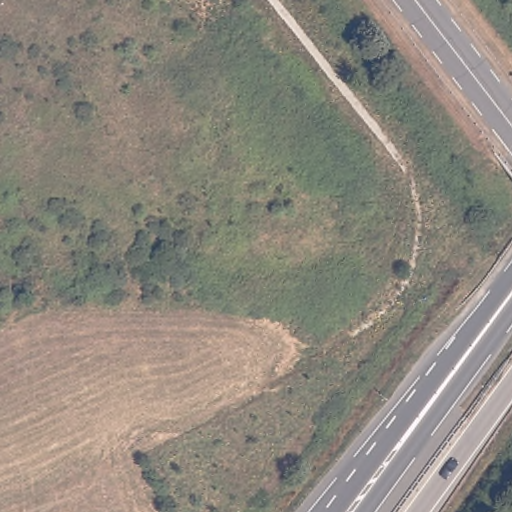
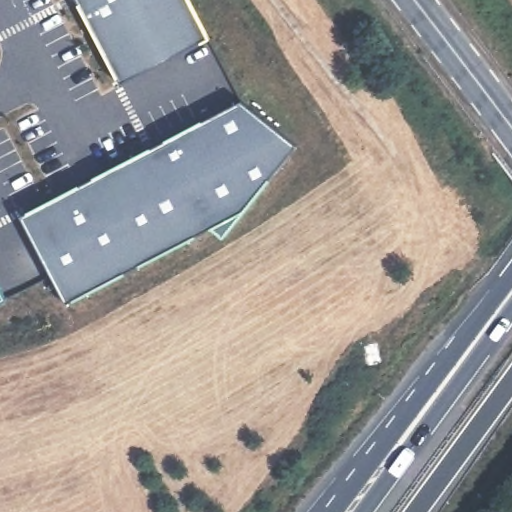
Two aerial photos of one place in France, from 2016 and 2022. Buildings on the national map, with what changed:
new [(209,40),(120,86),(76,0),(189,0),(209,40)]
new [(224,240),(212,230),(68,305),(20,216),(244,102),(298,145),(224,240)]
new [(0,303),(0,288),(6,300),(0,303)]

